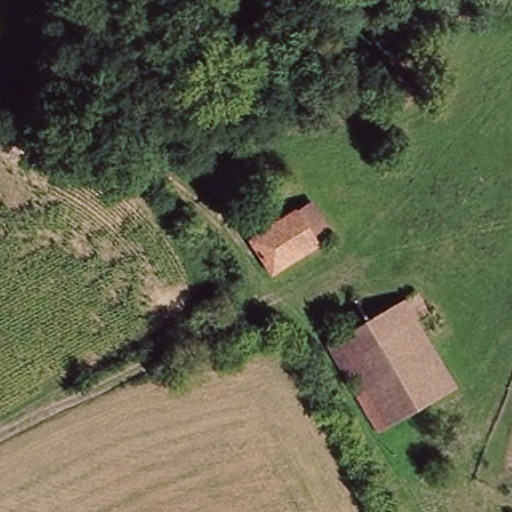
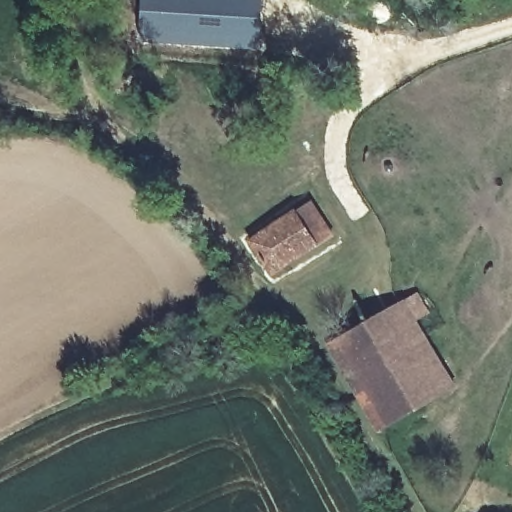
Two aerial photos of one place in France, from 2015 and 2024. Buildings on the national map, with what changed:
new [(264,0),(262,49),(138,41),(141,0),(264,0)]
unchanged [(314,202),(338,236),(276,275),(245,245),(314,202)]
unchanged [(419,292),(430,312),(416,321),(456,386),(379,426),(330,345),(419,292)]

